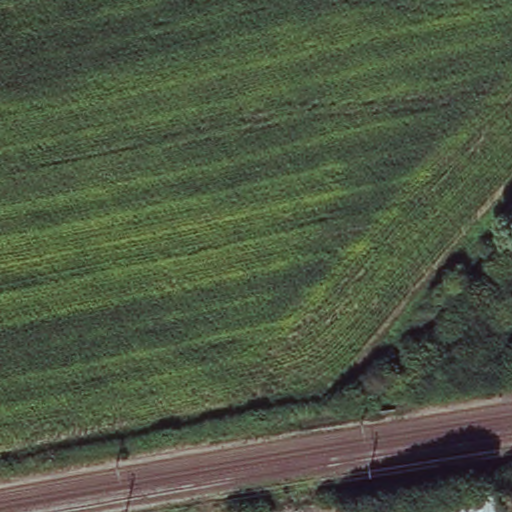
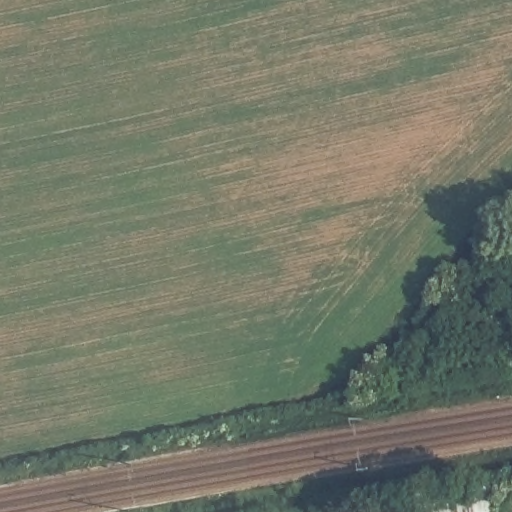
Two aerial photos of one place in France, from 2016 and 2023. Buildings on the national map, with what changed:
unchanged [(476,507),(447,512),(351,512),(349,502),(471,480),(476,507)]

